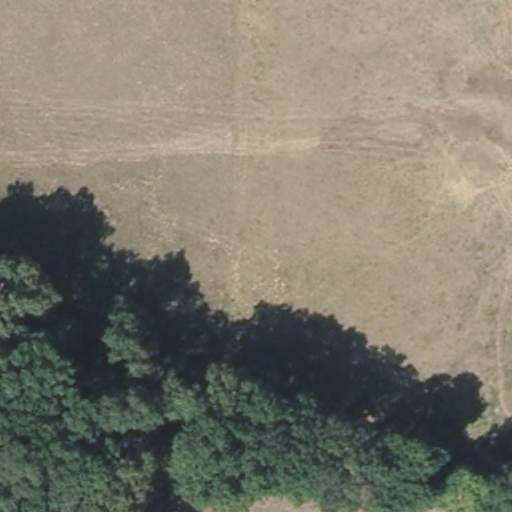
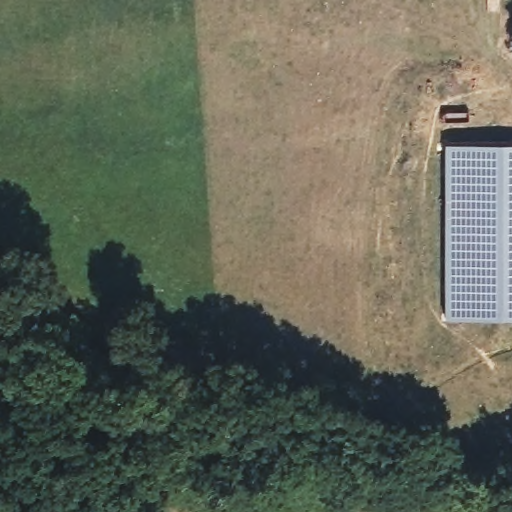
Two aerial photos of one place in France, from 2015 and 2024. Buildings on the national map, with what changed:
new [(512,319),(447,319),(447,143),(512,143),(512,319)]

